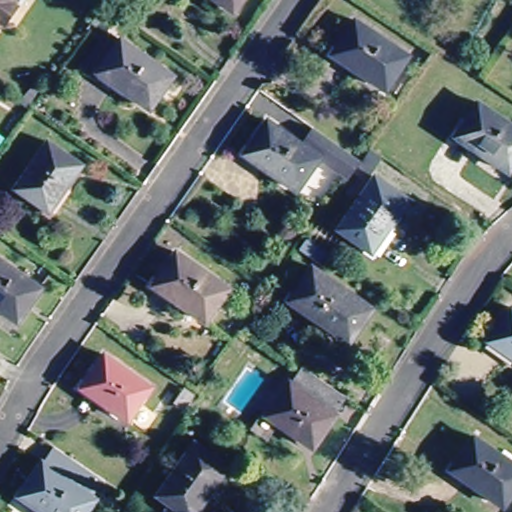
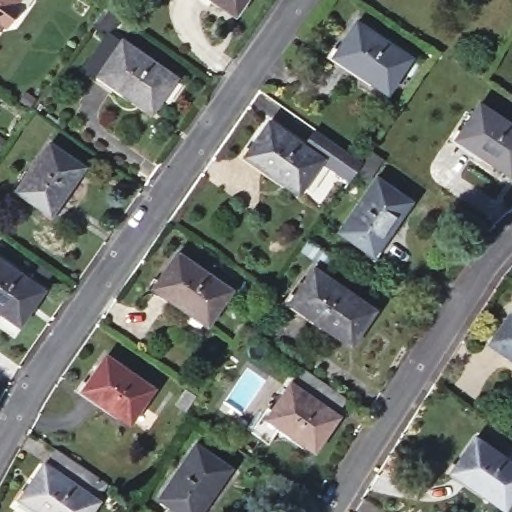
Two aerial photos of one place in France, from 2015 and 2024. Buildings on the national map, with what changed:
unchanged [(15,14),(5,29),(0,25),(0,0),(16,0),(10,10),(15,14)]
unchanged [(214,0),(244,0),(234,15),(214,0)]
unchanged [(385,88),(337,54),(359,23),(407,57),(385,88)]
unchanged [(95,69),(99,72),(93,76),(80,70),(104,37),(120,40),(95,69)]
unchanged [(172,75),(150,105),(103,69),(125,39),(172,75)]
unchanged [(475,96),(512,124),(512,170),(453,127),(475,96)]
unchanged [(270,121),(304,146),(316,130),(360,162),(348,180),(320,158),(295,190),(246,152),(270,121)]
unchanged [(82,165),(49,211),(17,189),(50,142),(82,165)]
unchanged [(373,250),(342,229),(375,180),(406,201),(373,250)]
unchanged [(340,235),(323,262),(301,246),(318,220),(340,235)]
unchanged [(209,322),(159,285),(182,254),(231,291),(209,322)]
unchanged [(0,310),(0,258),(44,290),(19,324),(0,310)]
unchanged [(347,333),(292,293),(315,261),(370,301),(347,333)]
unchanged [(510,309),(512,310),(512,356),(488,338),(510,309)]
unchanged [(126,417),(84,386),(105,357),(147,388),(126,417)]
unchanged [(296,373),(342,406),(330,423),(285,391),(296,373)]
unchanged [(310,452),(264,420),(285,391),(330,423),(310,452)]
unchanged [(456,470),(478,437),(512,461),(512,500),(508,506),(456,470)]
unchanged [(83,512),(36,512),(14,495),(49,450),(100,490),(83,512)]
unchanged [(174,508),(163,500),(201,450),(234,475),(205,512),(171,512),(174,508)]

